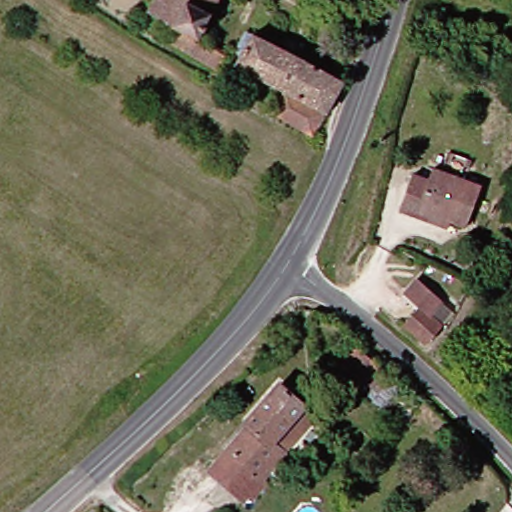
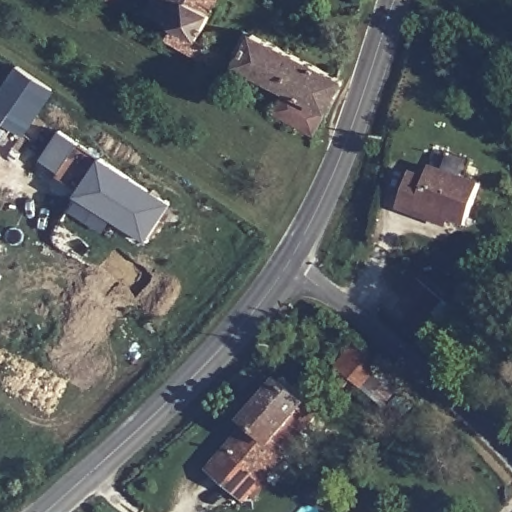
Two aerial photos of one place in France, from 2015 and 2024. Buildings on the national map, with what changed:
unchanged [(166,0),(230,0),(207,41),(235,56),(226,72),(175,43),(185,25),(160,11),(166,0)]
unchanged [(252,57),(263,36),(354,84),(322,139),(280,114),(295,90),(242,60),(246,54),(252,57)]
new [(0,91),(16,66),(55,91),(25,136),(0,119),(0,91)]
new [(57,132),(76,144),(57,173),(39,160),(57,132)]
new [(97,160),(166,206),(142,242),(72,196),(97,160)]
unchanged [(435,165),(487,182),(475,221),(457,215),(455,224),(409,206),(420,173),(431,176),(435,165)]
unchanged [(416,321),(435,299),(458,319),(440,341),(416,321)]
unchanged [(340,358),(355,340),(378,361),(365,378),(340,358)]
unchanged [(253,501),(215,475),(279,380),(318,406),(253,501)]

